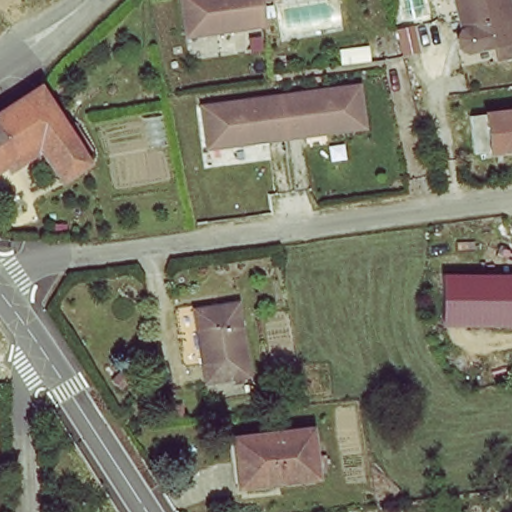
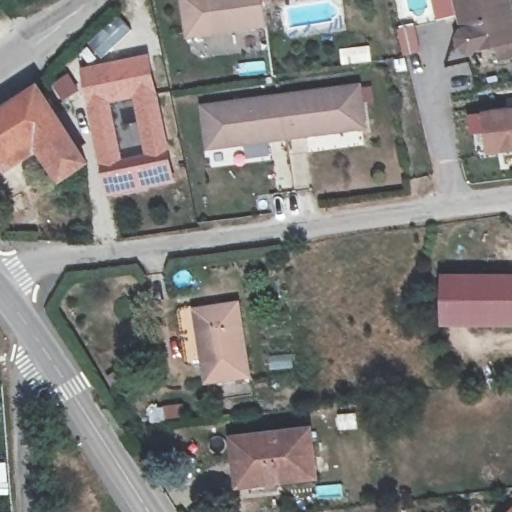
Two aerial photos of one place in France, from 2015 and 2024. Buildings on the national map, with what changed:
unchanged [(259,24),(182,37),(176,0),(255,0),(258,20),(259,24)]
unchanged [(503,50),(471,57),(465,51),(464,46),(468,40),(458,0),(512,0),(512,2),(512,63),(507,64),(503,50)]
new [(118,13),(133,30),(100,58),(87,42),(118,13)]
new [(149,52),(166,124),(177,181),(106,195),(80,67),(149,52)]
unchanged [(352,82),(357,121),(200,146),(195,106),(352,82)]
unchanged [(47,92),(94,162),(69,177),(46,143),(0,174),(0,123),(47,92)]
unchanged [(481,150),(476,107),(512,104),(512,147),(481,150)]
unchanged [(482,268),(492,320),(433,321),(434,268),(482,268)]
unchanged [(511,268),(510,320),(492,320),(482,268),(511,268)]
unchanged [(239,302),(250,375),(210,382),(198,310),(239,302)]
demolished [(496,388),(492,356),(512,352),(512,385),(496,388)]
unchanged [(308,431),(314,477),(280,482),(280,477),(240,482),(234,441),(308,431)]

